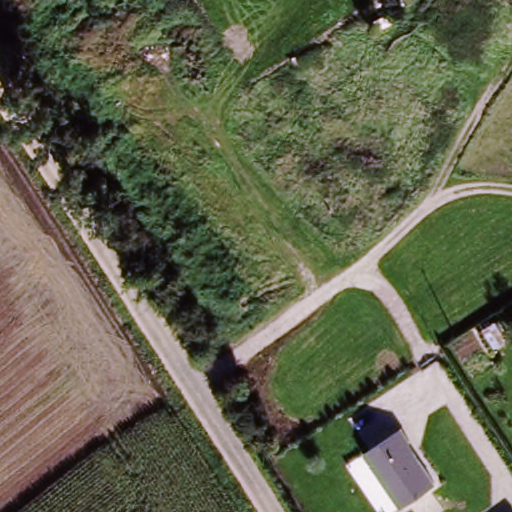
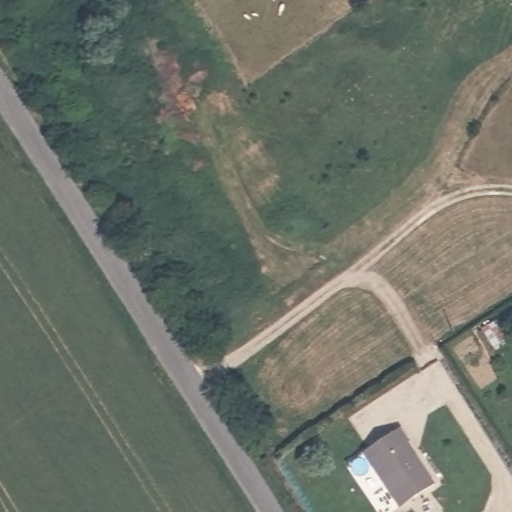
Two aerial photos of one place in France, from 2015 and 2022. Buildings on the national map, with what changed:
unchanged [(405,9),(397,0),(416,0),(405,9)]
unchanged [(400,429),(410,443),(408,445),(435,484),(398,509),(360,454),(400,429)]

